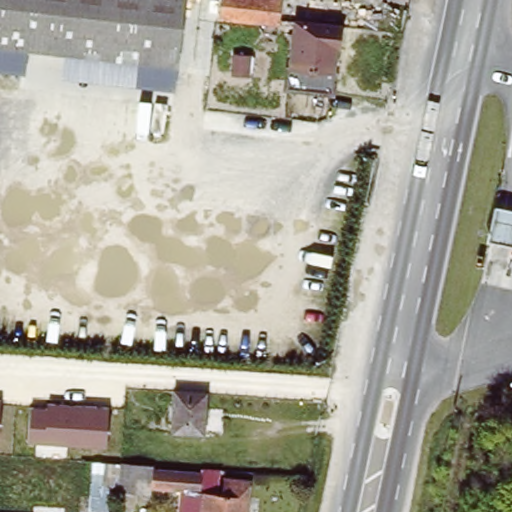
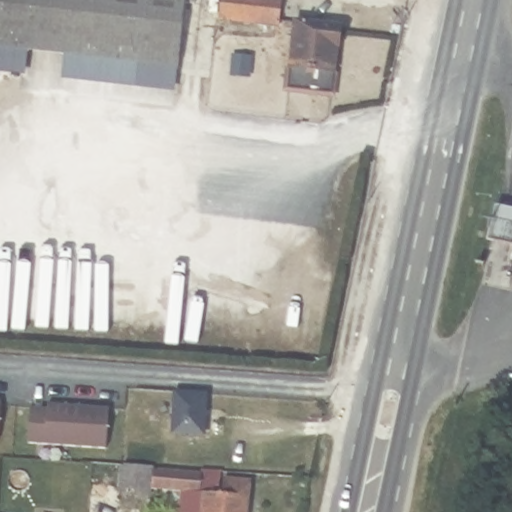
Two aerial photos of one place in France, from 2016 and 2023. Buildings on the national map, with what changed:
unchanged [(0,38),(0,0),(182,0),(175,57),(0,38)]
unchanged [(215,21),(217,0),(281,0),(278,28),(215,21)]
unchanged [(293,22),(343,27),(339,77),(331,76),(329,98),(286,94),(293,22)]
unchanged [(0,63),(0,38),(175,57),(172,83),(0,63)]
unchanged [(506,213),(512,214),(512,245),(500,244),(506,213)]
unchanged [(166,390),(208,391),(206,438),(165,436),(166,390)]
unchanged [(0,417),(0,393),(2,393),(0,417)]
unchanged [(107,441),(28,437),(30,403),(47,403),(47,397),(110,400),(107,441)]
unchanged [(117,457),(90,457),(90,439),(118,440),(117,457)]
unchanged [(77,461),(220,470),(219,480),(247,480),(246,512),(196,512),(197,493),(151,487),(150,495),(76,491),(77,461)]

